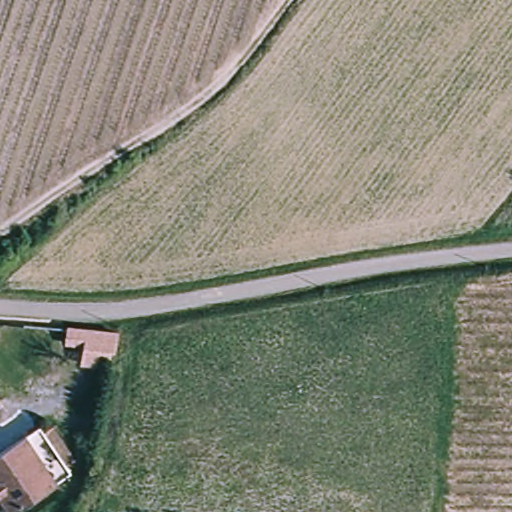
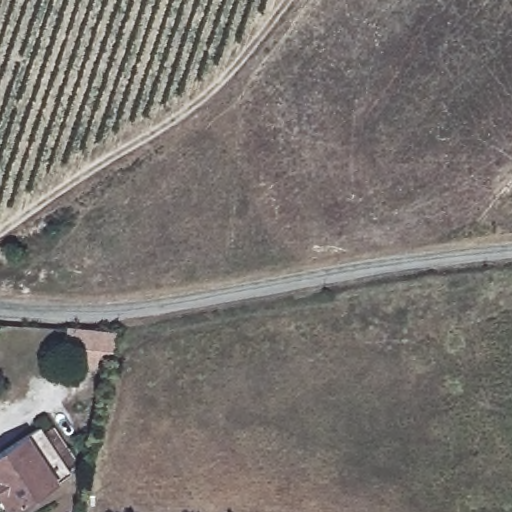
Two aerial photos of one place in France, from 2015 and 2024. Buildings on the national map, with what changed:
unchanged [(114,362),(75,358),(77,348),(64,347),(66,329),(120,333),(114,362)]
unchanged [(28,432),(34,442),(48,433),(67,466),(55,473),(59,480),(13,512),(0,512),(0,451),(28,432)]

